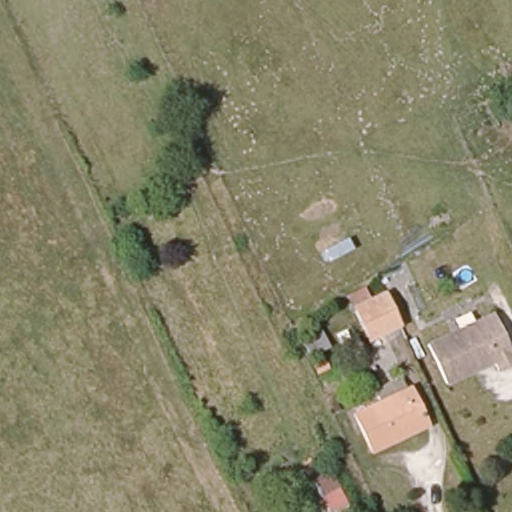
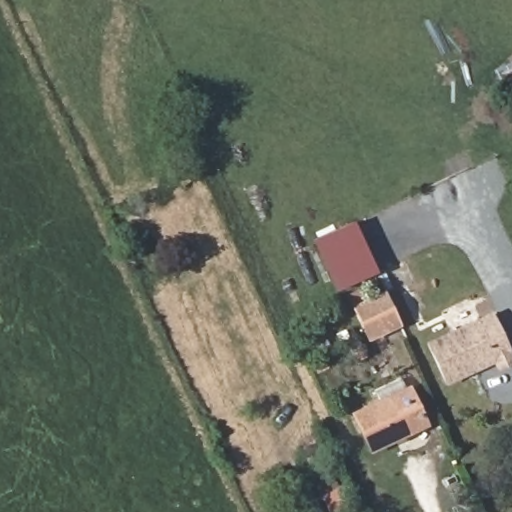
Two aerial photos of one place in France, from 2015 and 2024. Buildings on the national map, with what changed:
new [(317,242),(355,223),(377,272),(341,294),(317,242)]
unchanged [(400,320),(370,334),(358,308),(387,294),(400,320)]
unchanged [(512,364),(498,370),(494,361),(446,384),(429,346),(494,316),(512,357),(512,364)]
unchanged [(426,422),(370,451),(355,417),(410,386),(426,422)]

